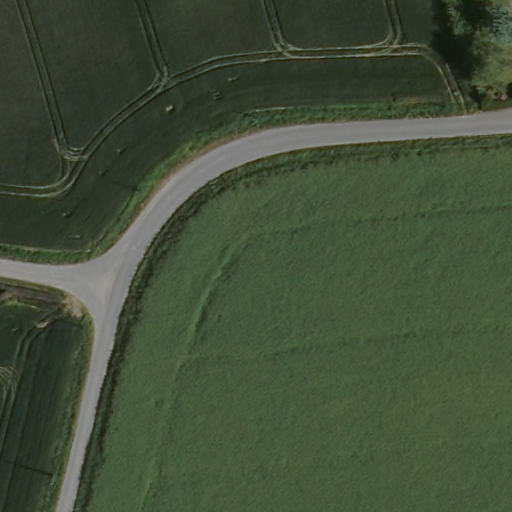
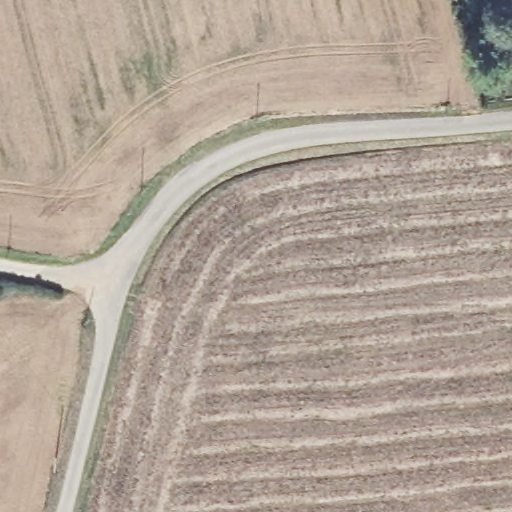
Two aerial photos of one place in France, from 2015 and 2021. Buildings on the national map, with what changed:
[]

